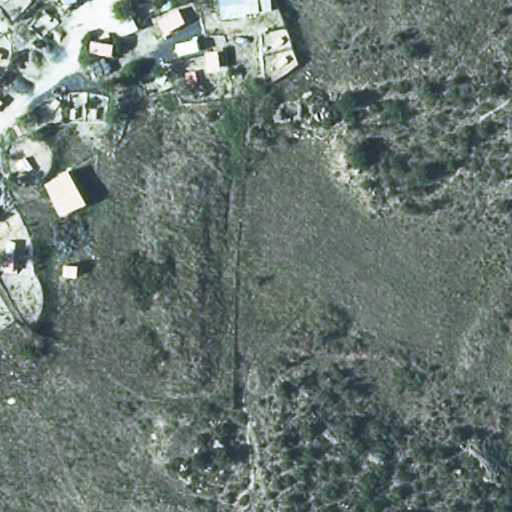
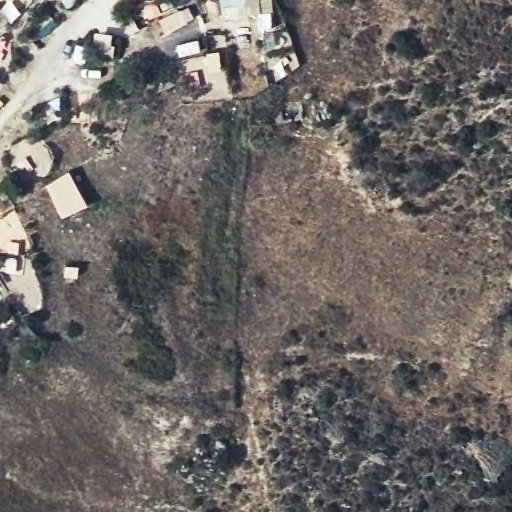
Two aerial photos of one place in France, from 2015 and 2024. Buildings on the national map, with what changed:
unchanged [(221,0),(242,0),(245,22),(223,25),(221,0)]
unchanged [(68,171),(87,205),(63,217),(47,182),(68,171)]

